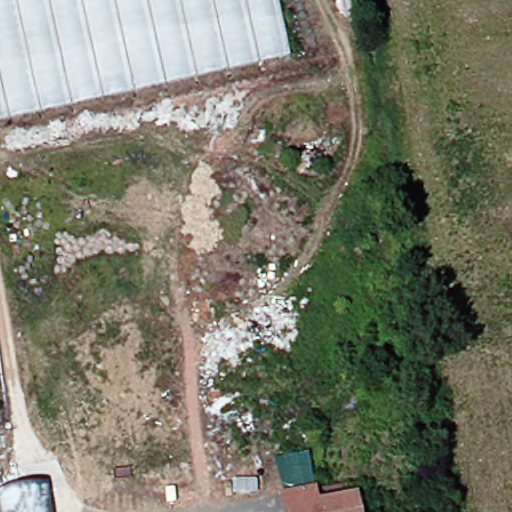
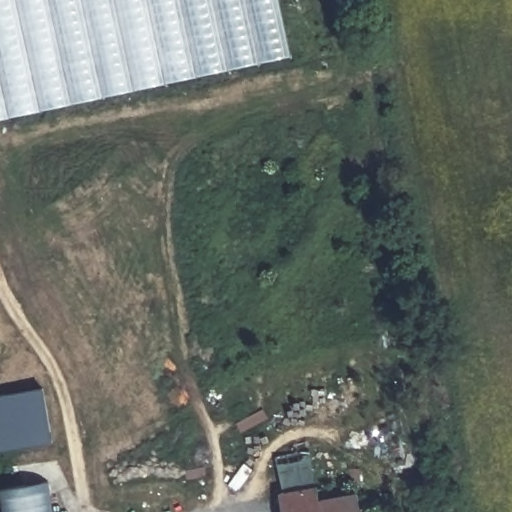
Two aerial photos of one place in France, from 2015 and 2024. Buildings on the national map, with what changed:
unchanged [(301,56),(0,123),(0,0),(288,0),(301,56)]
new [(50,443),(0,451),(0,396),(43,390),(50,443)]
new [(2,512),(0,500),(0,489),(48,480),(54,512),(2,512)]
unchanged [(362,496),(365,512),(292,512),(289,495),(322,489),(325,505),(362,496)]

